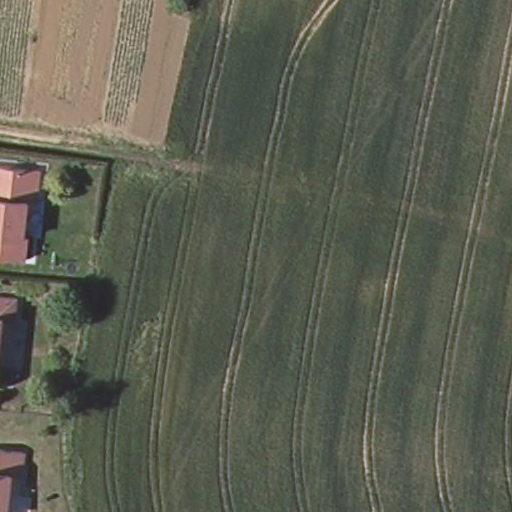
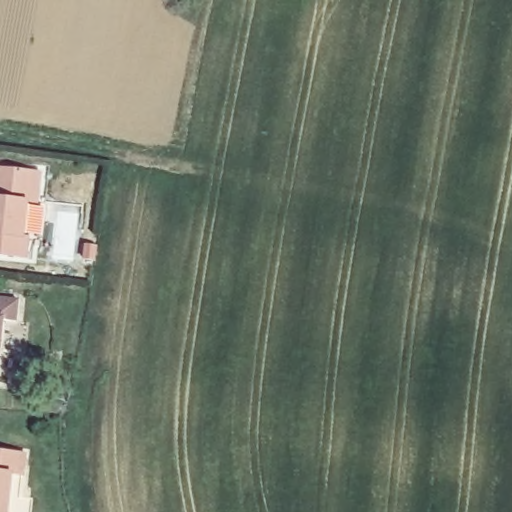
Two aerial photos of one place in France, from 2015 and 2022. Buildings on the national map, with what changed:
unchanged [(42,200),(33,199),(30,235),(34,235),(32,257),(0,254),(0,166),(45,169),(42,200)]
unchanged [(5,319),(3,335),(0,335),(0,296),(20,298),(18,320),(5,319)]
unchanged [(0,364),(0,354),(1,355),(0,364)]
unchanged [(17,471),(13,512),(0,512),(0,448),(30,451),(28,473),(17,471)]

